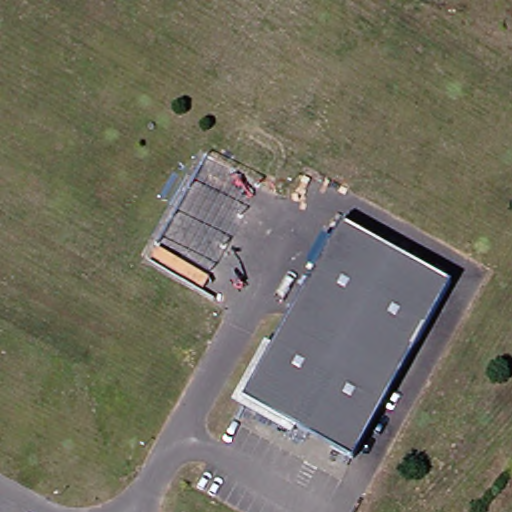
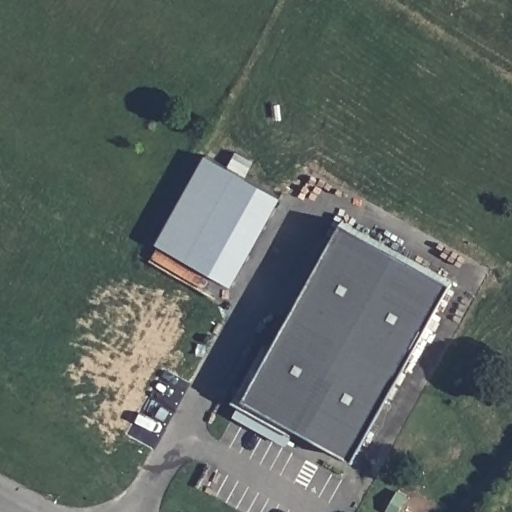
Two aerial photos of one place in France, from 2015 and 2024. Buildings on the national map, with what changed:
new [(211,275),(204,289),(151,259),(161,240),(158,238),(204,155),(281,198),(232,285),(209,273),(211,275)]
unchanged [(343,464),(235,403),(336,226),(444,287),(343,464)]

